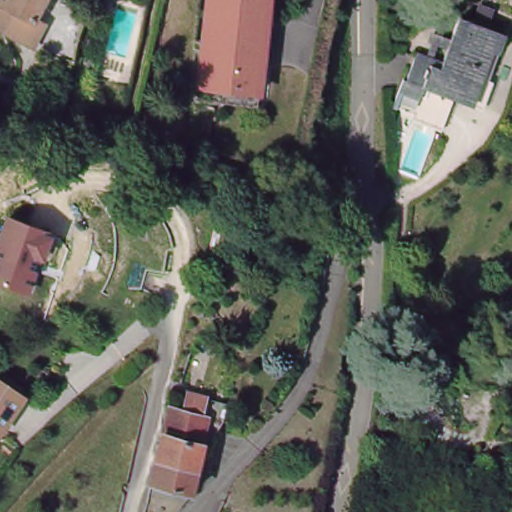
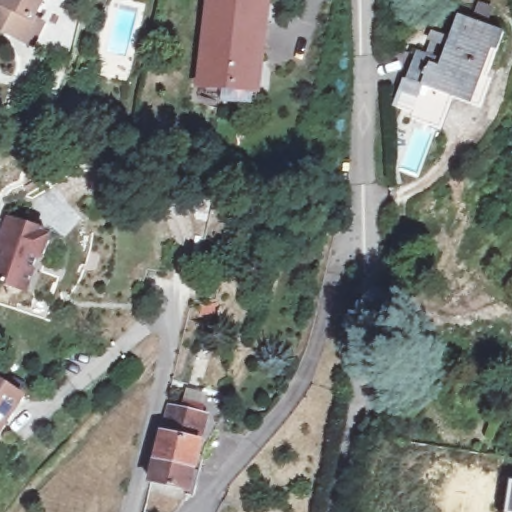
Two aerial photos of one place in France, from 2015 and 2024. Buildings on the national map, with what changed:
unchanged [(31,40),(0,23),(0,0),(39,0),(32,13),(42,19),(31,40)]
unchanged [(197,88),(207,0),(268,0),(258,94),(197,88)]
unchanged [(412,110),(392,103),(402,75),(405,76),(415,50),(441,59),(460,15),(504,33),(477,99),(451,89),(449,94),(438,121),(412,110)]
unchanged [(0,280),(0,241),(9,217),(46,230),(45,233),(48,239),(44,253),(30,291),(25,289),(0,280)]
unchanged [(0,420),(0,389),(15,399),(0,420)]
unchanged [(157,444),(162,424),(167,406),(167,404),(180,408),(185,409),(189,394),(190,392),(200,394),(225,399),(224,407),(222,411),(221,417),(208,414),(201,445),(205,447),(199,470),(184,466),(181,466),(175,464),(175,461),(155,457),(155,456),(157,444)]
unchanged [(155,457),(175,461),(175,464),(181,466),(184,466),(199,470),(192,495),(187,494),(189,490),(149,482),(150,479),(150,478),(155,456),(155,457)]
new [(510,479),(512,480),(512,512),(505,512),(510,479)]

